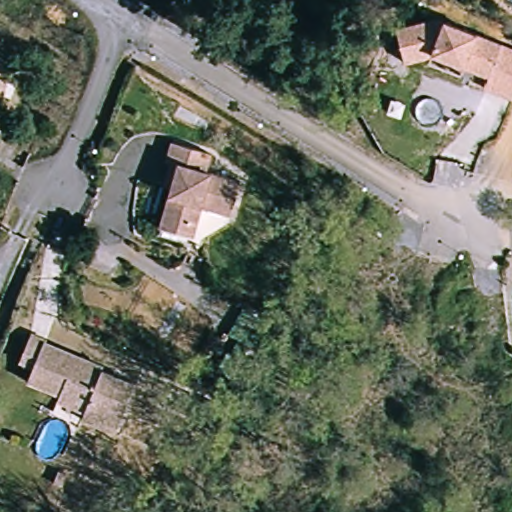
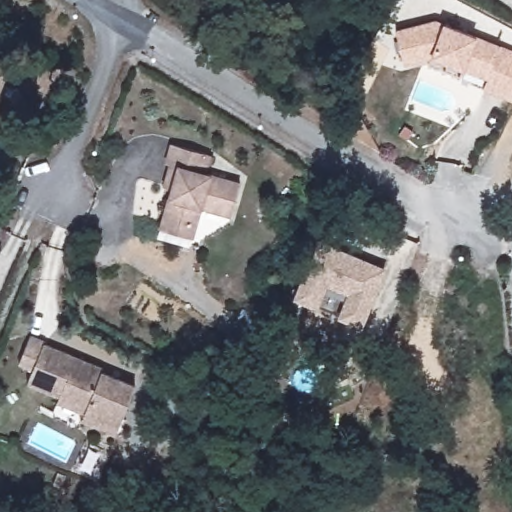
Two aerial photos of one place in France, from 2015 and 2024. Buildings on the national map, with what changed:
unchanged [(482,90),(485,80),(461,70),(430,58),(402,67),(392,32),(433,20),(441,23),(476,36),(512,50),(512,99),(511,101),(482,90)]
unchanged [(10,62),(2,82),(7,84),(0,102),(0,58),(10,62)]
unchanged [(209,152),(204,170),(235,179),(225,214),(196,210),(188,236),(152,229),(163,190),(157,185),(164,166),(160,164),(167,140),(209,152)]
new [(361,328),(335,316),(346,295),(326,285),(316,308),(292,298),(317,239),(386,267),(361,328)]
unchanged [(100,373),(132,389),(112,430),(80,415),(83,408),(25,381),(32,367),(18,360),(31,333),(46,340),(45,342),(102,370),(100,373)]

